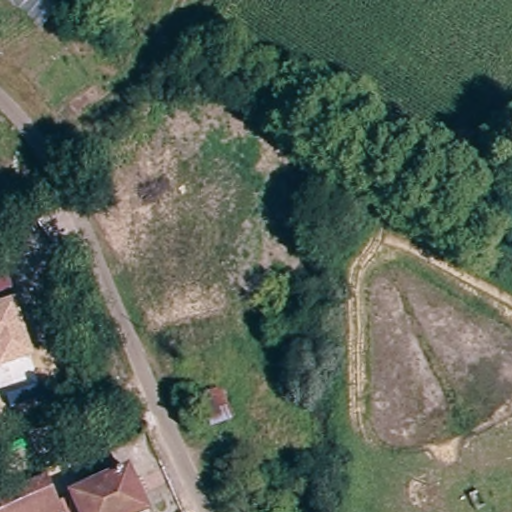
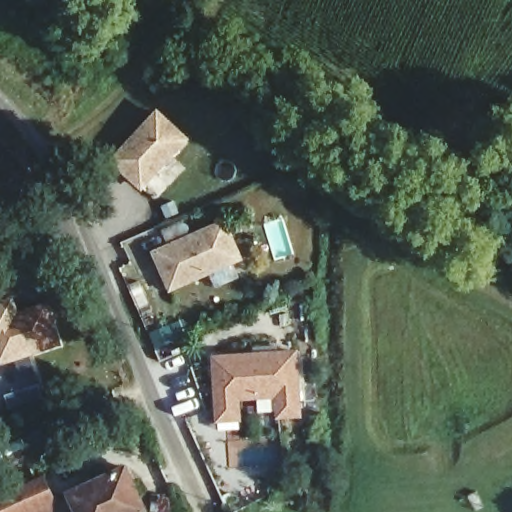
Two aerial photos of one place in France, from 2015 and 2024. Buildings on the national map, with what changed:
new [(191,139),(143,190),(110,159),(158,107),(191,139)]
new [(245,260),(170,292),(152,250),(226,219),(245,260)]
unchanged [(0,294),(0,264),(1,263),(10,290),(0,294)]
unchanged [(0,367),(0,301),(13,296),(34,356),(0,367)]
new [(275,400),(242,403),(242,422),(216,423),(211,355),(299,350),(304,418),(278,420),(275,400)]
new [(43,472),(62,512),(0,512),(0,495),(43,472)]
unchanged [(68,502),(121,472),(144,512),(74,512),(68,502)]
demolished [(3,512),(0,512),(0,506),(3,512)]

